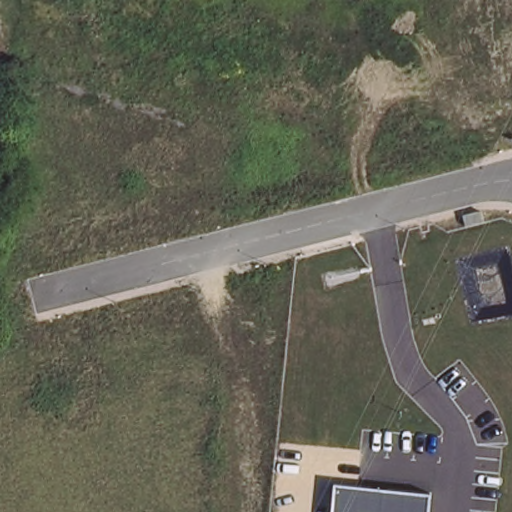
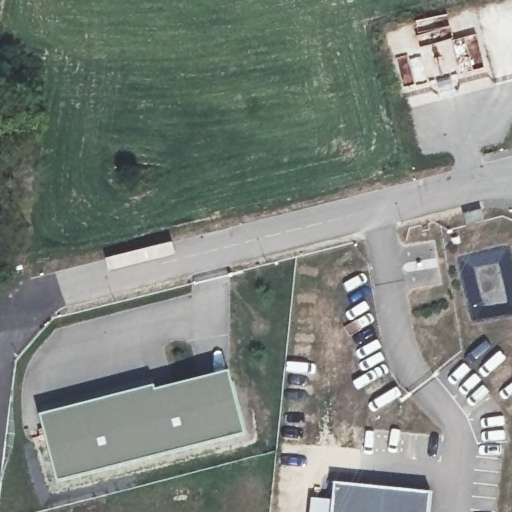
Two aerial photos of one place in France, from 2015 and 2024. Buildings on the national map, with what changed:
new [(40,415),(152,386),(154,390),(228,371),(244,434),(58,481),(40,415)]
demolished [(113,414),(110,425),(85,419),(90,407),(113,414)]
unchanged [(428,512),(331,512),(334,482),(431,492),(428,512)]

